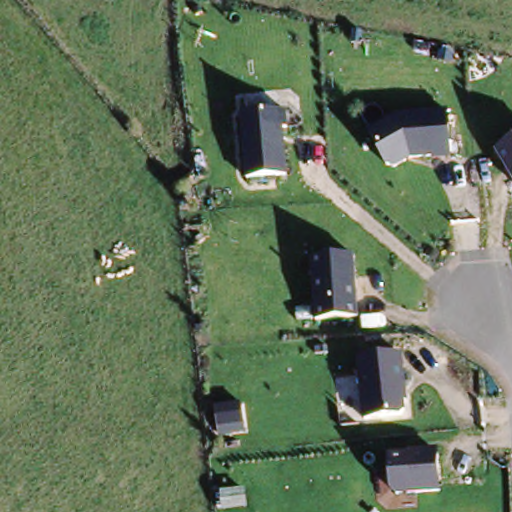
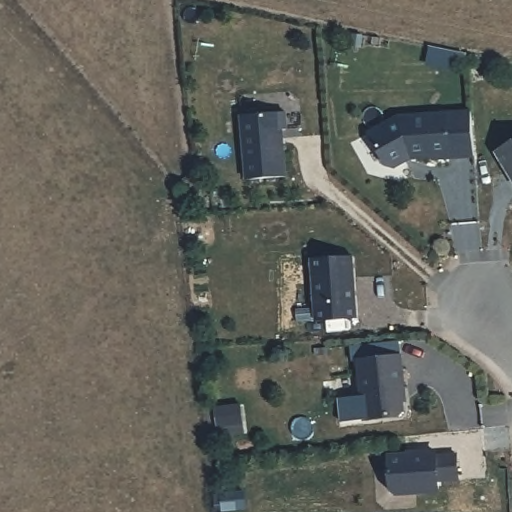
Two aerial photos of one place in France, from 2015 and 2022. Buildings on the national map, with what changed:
unchanged [(246,180),(241,116),(283,113),(289,112),(290,131),(284,131),(289,177),(246,180)]
unchanged [(453,160),(413,160),(397,170),(388,167),(369,132),(399,116),(449,113),(453,160)]
unchanged [(496,152),(512,142),(512,178),(496,152)]
unchanged [(316,322),(312,260),(356,257),(360,319),(316,322)]
unchanged [(409,403),(406,403),(407,412),(403,417),(364,421),(358,357),(404,354),(409,403)]
unchanged [(442,493),(392,496),(389,453),(439,451),(442,493)]

